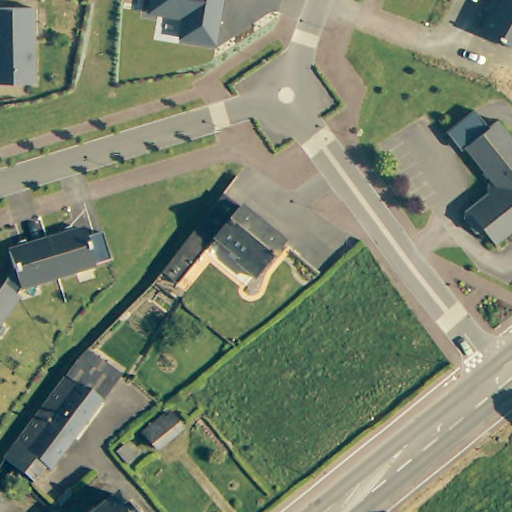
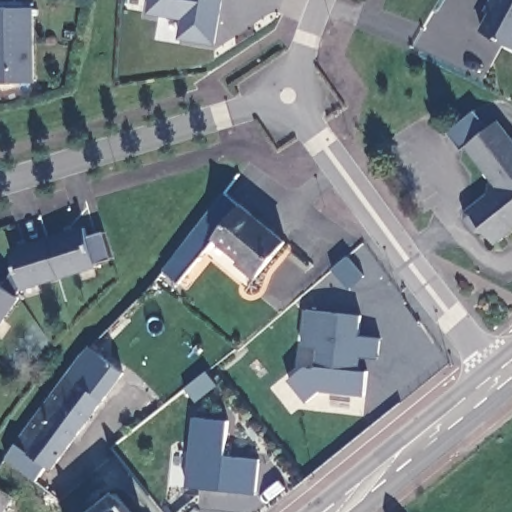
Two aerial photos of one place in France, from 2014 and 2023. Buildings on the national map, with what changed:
unchanged [(215,38),(180,33),(183,13),(149,7),(150,0),(221,0),(215,38)]
unchanged [(512,47),(482,30),(497,0),(512,0),(512,47)]
unchanged [(0,79),(0,4),(32,3),(34,78),(0,79)]
unchanged [(467,221),(467,212),(489,193),(488,186),(492,183),(465,151),(461,154),(446,136),(473,113),(488,130),(497,123),(512,142),(512,231),(496,244),(484,231),(475,231),(467,221)]
unchanged [(222,194),(238,206),(240,204),(286,240),(257,276),(239,261),(241,259),(215,239),(182,281),(179,284),(162,271),(165,267),(222,194)]
unchanged [(85,222),(87,230),(104,225),(112,253),(96,258),(97,260),(59,272),(47,234),(85,222)]
unchanged [(16,263),(10,245),(47,234),(59,272),(22,283),(17,290),(3,281),(16,263)]
unchanged [(3,281),(17,290),(20,292),(0,321),(0,279),(3,281)]
new [(320,391),(306,402),(288,379),(303,366),(313,368),(316,365),(317,348),(301,347),(305,310),(360,315),(358,335),(380,337),(377,359),(360,357),(358,369),(368,371),(365,396),(320,391)]
unchanged [(7,473),(12,467),(0,458),(0,452),(2,448),(7,442),(29,414),(30,412),(32,409),(66,363),(67,363),(68,363),(72,359),(75,355),(82,347),(90,353),(91,354),(101,362),(115,373),(113,375),(109,381),(82,417),(56,454),(45,468),(40,465),(30,479),(26,477),(22,474),(17,480),(7,473)]
new [(206,365),(217,379),(195,397),(184,383),(206,365)]
demolished [(144,426),(170,407),(182,421),(156,441),(144,426)]
new [(186,486),(192,417),(229,421),(225,454),(259,458),(256,493),(186,486)]
unchanged [(9,490),(0,504),(0,484),(9,490)]
unchanged [(132,512),(93,512),(117,493),(132,512)]
unchanged [(394,512),(406,503),(413,512),(394,512)]

